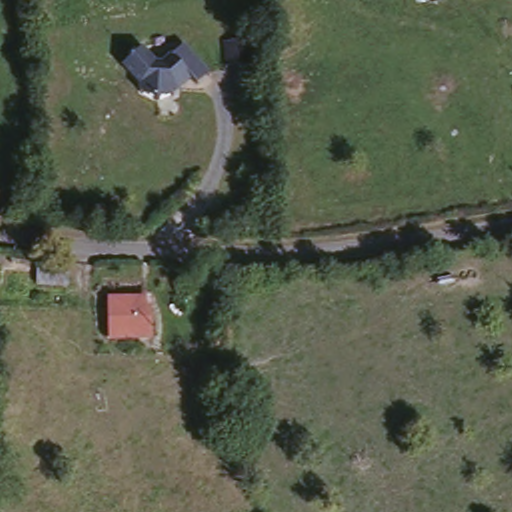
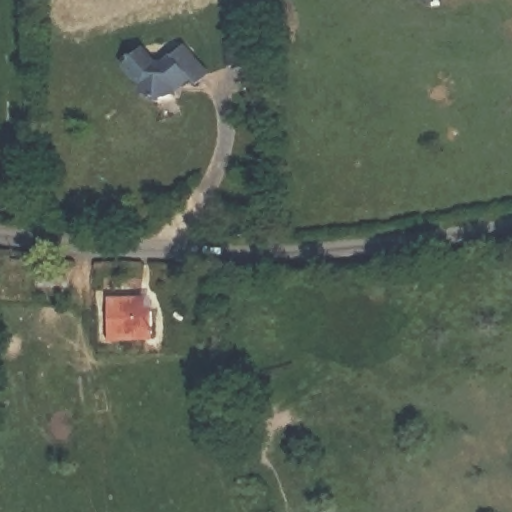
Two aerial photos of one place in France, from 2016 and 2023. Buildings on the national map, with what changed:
unchanged [(438,7),(423,10),(421,0),(436,0),(438,7)]
unchanged [(147,46),(161,57),(183,41),(211,68),(201,79),(192,74),(174,89),(161,91),(144,86),(145,80),(126,59),(147,46)]
unchanged [(144,298),(147,309),(152,309),(156,325),(147,328),(148,333),(114,340),(107,306),(144,298)]

